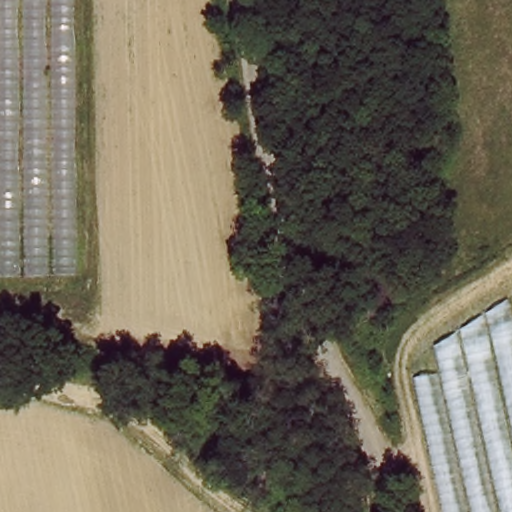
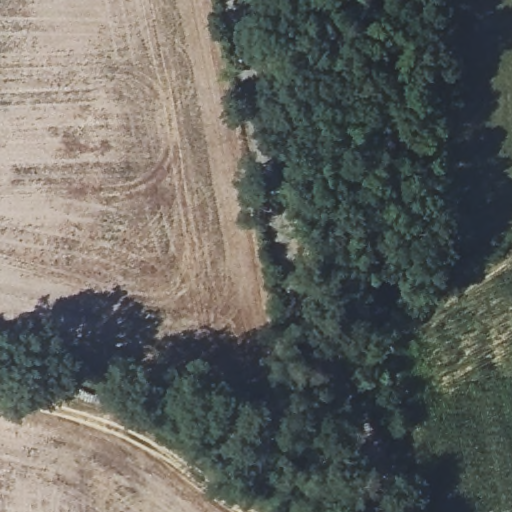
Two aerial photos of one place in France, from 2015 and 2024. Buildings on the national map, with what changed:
demolished [(0,279),(0,0),(68,0),(69,278),(0,279)]
new [(512,349),(512,512),(439,512),(409,381),(436,375),(429,349),(502,303),(512,349)]
new [(16,436),(46,430),(63,512),(9,512),(0,472),(0,414),(11,411),(16,436)]

